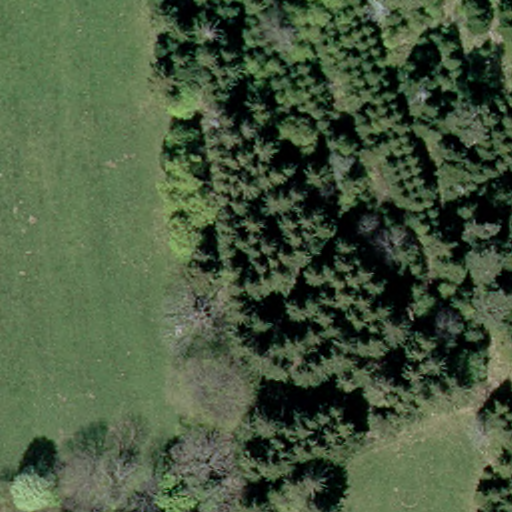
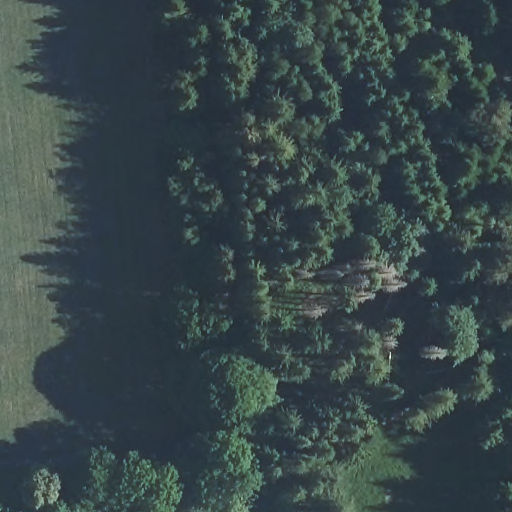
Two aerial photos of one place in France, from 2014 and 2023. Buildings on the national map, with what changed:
[]

